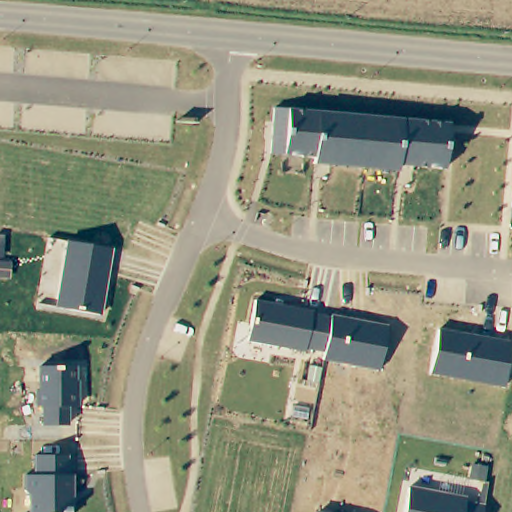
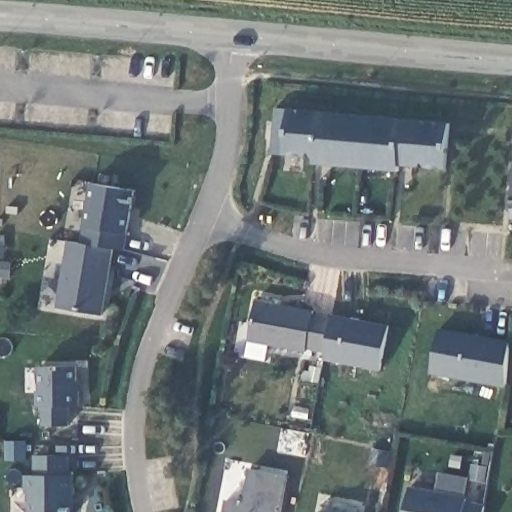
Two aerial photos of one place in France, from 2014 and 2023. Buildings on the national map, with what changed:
unchanged [(445,168),(399,165),(398,172),(315,164),(315,159),(285,155),(270,154),(274,108),(290,109),(452,124),(445,168)]
new [(80,243),(90,181),(137,189),(127,251),(113,248),(80,243)]
unchanged [(512,215),(512,219),(511,219),(512,215)]
unchanged [(113,248),(101,316),(56,308),(68,241),(113,248)]
unchanged [(314,311),(312,314),(332,319),(332,316),(388,327),(380,369),(323,360),(325,353),(305,349),(305,352),(249,341),(257,300),(314,311)]
unchanged [(511,342),(505,388),(431,373),(440,329),(511,342)]
unchanged [(75,365),(75,382),(78,382),(78,407),(67,407),(68,426),(42,426),(42,407),(35,407),(35,390),(37,390),(37,365),(75,365)]
unchanged [(70,475),(74,474),(73,512),(32,512),(31,496),(25,491),(24,474),(35,474),(35,455),(70,454),(70,475)]
new [(244,501),(250,467),(290,474),(282,512),(222,512),(225,499),(244,501)]
unchanged [(466,501),(485,504),(483,512),(405,512),(410,487),(467,497),(466,501)]

